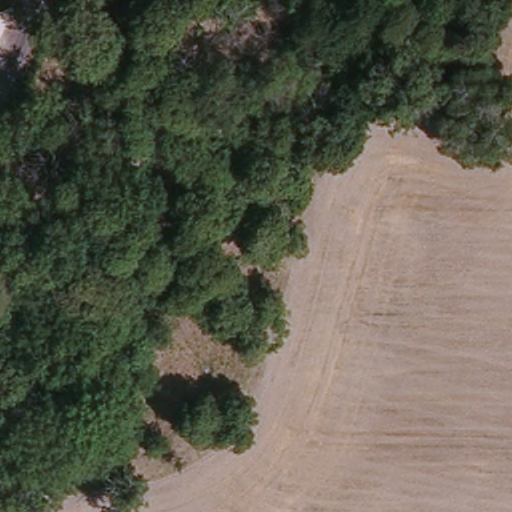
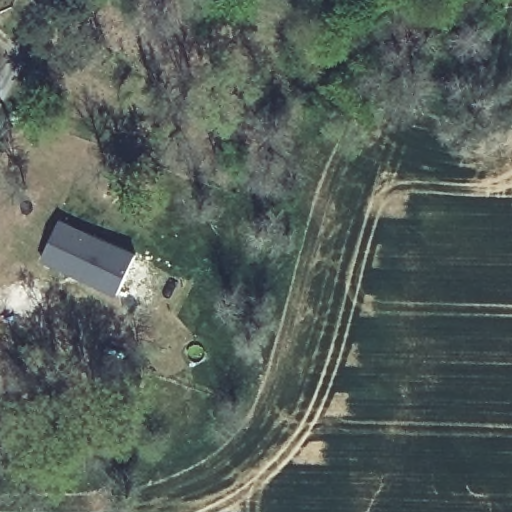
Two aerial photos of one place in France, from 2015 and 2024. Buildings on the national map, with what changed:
new [(43,259),(63,218),(136,252),(118,292),(43,259)]
unchanged [(150,386),(143,408),(124,405),(129,381),(150,386)]

